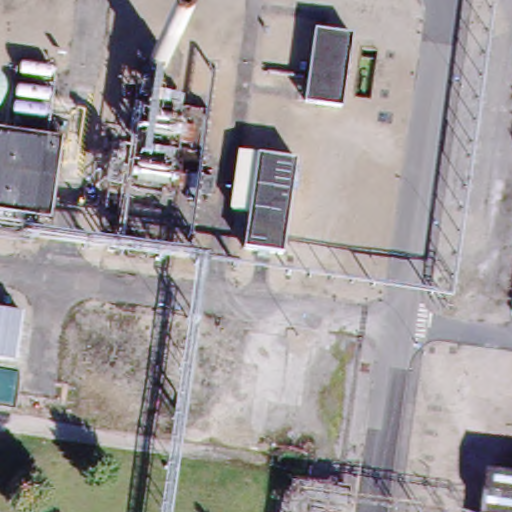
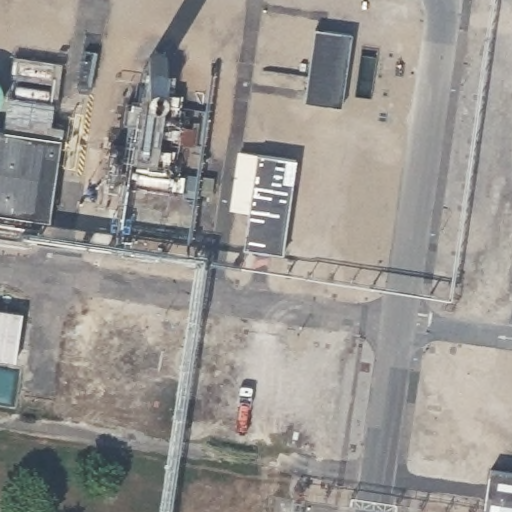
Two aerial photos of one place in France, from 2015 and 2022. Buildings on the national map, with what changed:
unchanged [(347,35),(336,108),(299,103),(310,30),(347,35)]
unchanged [(175,192),(122,184),(132,93),(187,100),(175,192)]
unchanged [(56,139),(44,222),(0,215),(0,131),(56,139)]
unchanged [(287,166),(273,260),(235,255),(249,161),(287,166)]
unchanged [(512,475),(512,512),(476,512),(482,471),(512,475)]

